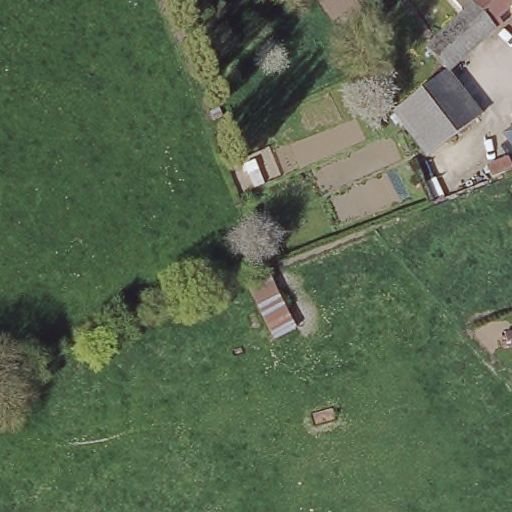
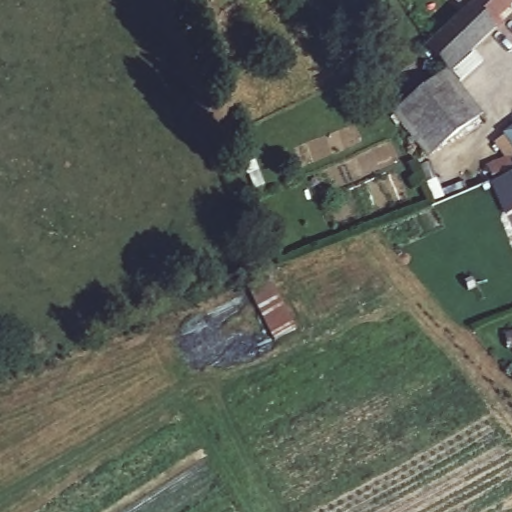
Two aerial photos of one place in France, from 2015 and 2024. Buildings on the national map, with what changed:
unchanged [(437,43),(464,11),(453,0),(512,0),(512,26),(461,75),(437,43)]
unchanged [(484,125),(433,159),(408,108),(450,76),(484,125)]
new [(512,127),(512,149),(502,136),(512,127)]
new [(512,214),(504,217),(489,184),(512,174),(512,214)]
unchanged [(278,281),(301,335),(271,345),(249,291),(278,281)]

